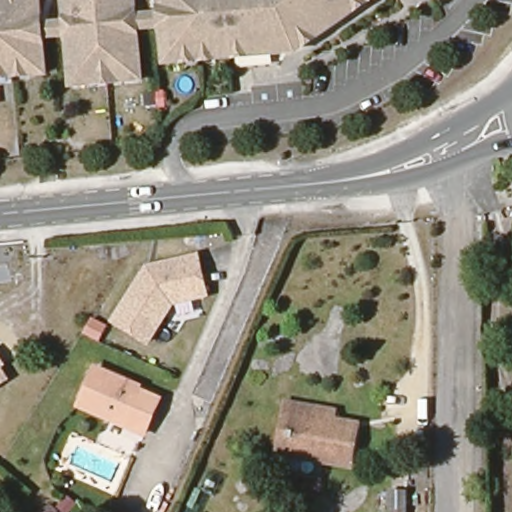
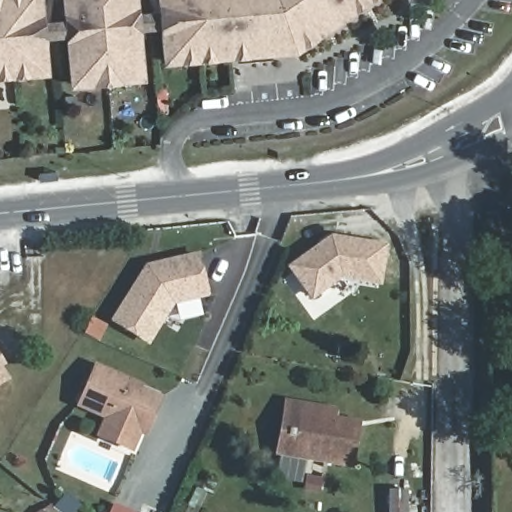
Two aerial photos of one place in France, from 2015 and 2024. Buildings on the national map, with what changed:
unchanged [(41,23),(43,46),(46,77),(30,78),(0,81),(0,0),(39,0),(41,23)]
unchanged [(73,89),(70,66),(75,65),(69,0),(130,0),(135,60),(140,60),(142,82),(120,84),(95,87),(73,89)]
unchanged [(163,31),(161,16),(160,0),(373,0),(342,22),(296,54),(280,55),(216,61),(182,64),(166,66),(163,31)]
new [(311,301),(286,267),(330,235),(388,244),(381,287),(341,280),(311,301)]
unchanged [(209,297),(174,305),(149,347),(107,322),(142,265),(199,252),(209,297)]
unchanged [(103,426),(107,417),(78,406),(95,367),(135,383),(134,387),(158,398),(143,432),(139,441),(103,426)]
unchanged [(5,379),(0,382),(0,371),(5,379)]
unchanged [(351,466),(288,456),(277,453),(286,402),(334,410),(333,420),(358,424),(351,466)]
unchanged [(406,512),(391,512),(391,492),(407,493),(406,512)]
unchanged [(60,512),(42,512),(51,505),(60,512)]

